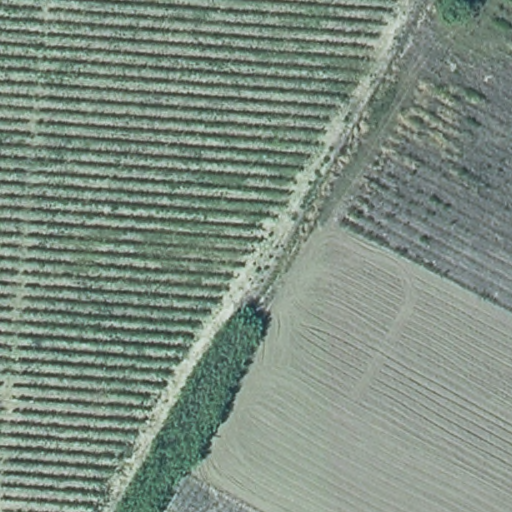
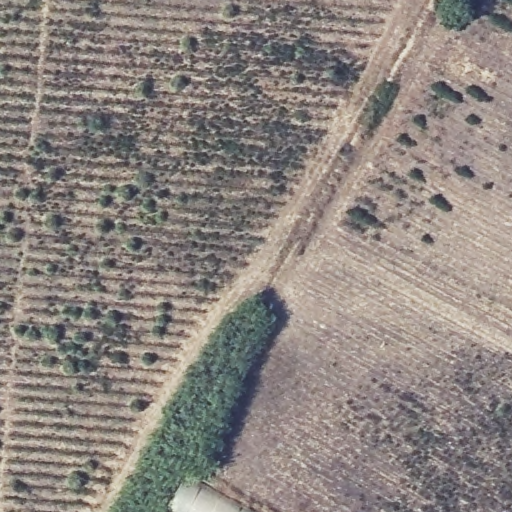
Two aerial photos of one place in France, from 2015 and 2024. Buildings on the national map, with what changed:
new [(251,512),(163,512),(183,476),(251,512)]

